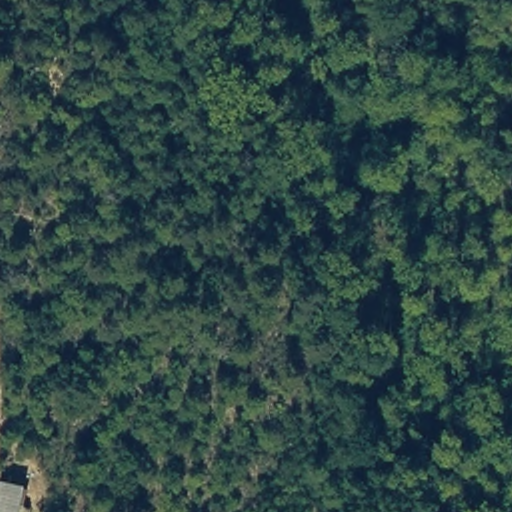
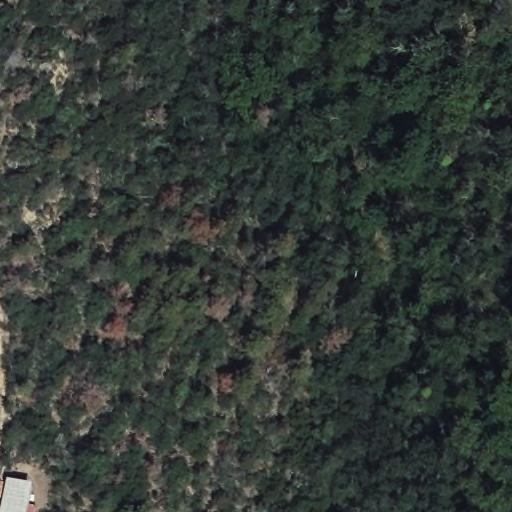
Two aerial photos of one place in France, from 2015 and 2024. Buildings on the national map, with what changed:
unchanged [(8,480),(38,483),(34,512),(5,512),(8,480)]

